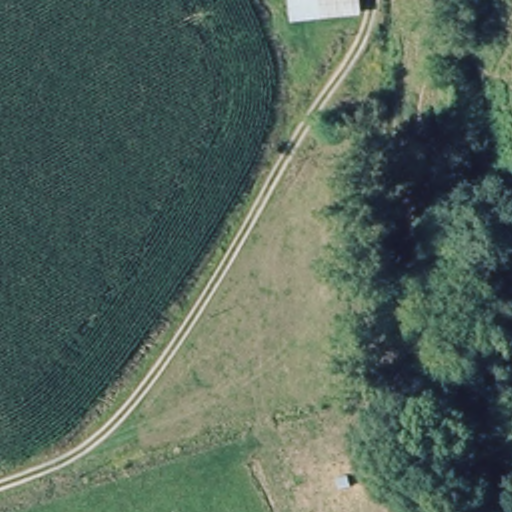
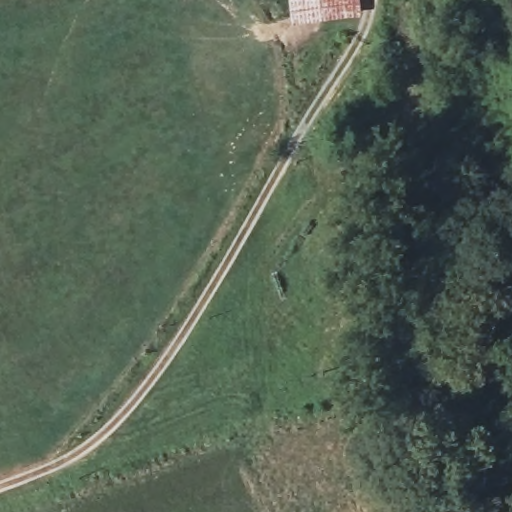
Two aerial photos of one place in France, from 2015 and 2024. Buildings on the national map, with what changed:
unchanged [(357,16),(296,26),(292,0),(361,0),(357,16)]

